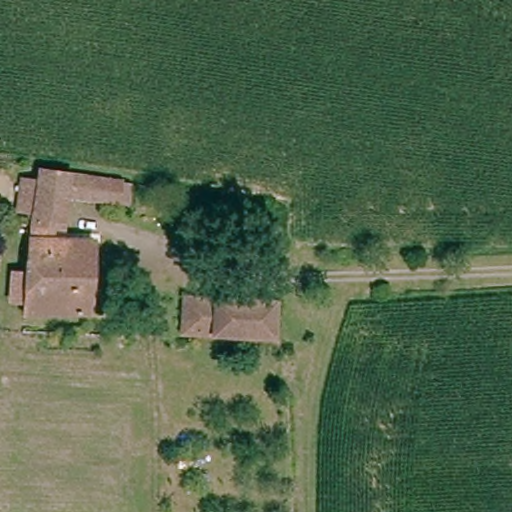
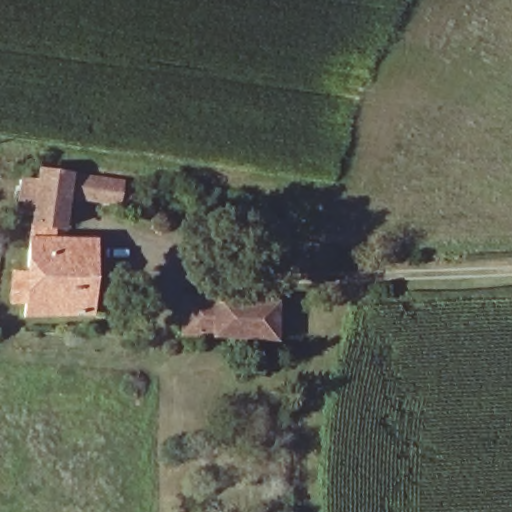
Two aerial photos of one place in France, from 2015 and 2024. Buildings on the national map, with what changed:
unchanged [(36,178),(119,190),(116,212),(57,203),(54,224),(30,220),(36,178)]
unchanged [(33,235),(92,242),(91,319),(33,317),(33,318),(27,317),(28,307),(10,306),(12,282),(30,284),(33,235)]
unchanged [(269,302),(269,330),(191,326),(192,300),(269,302)]

